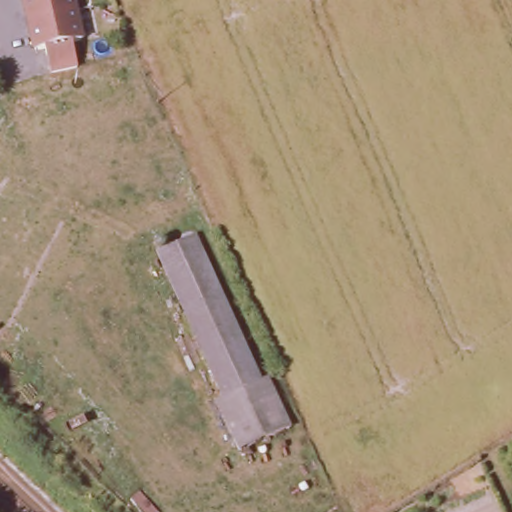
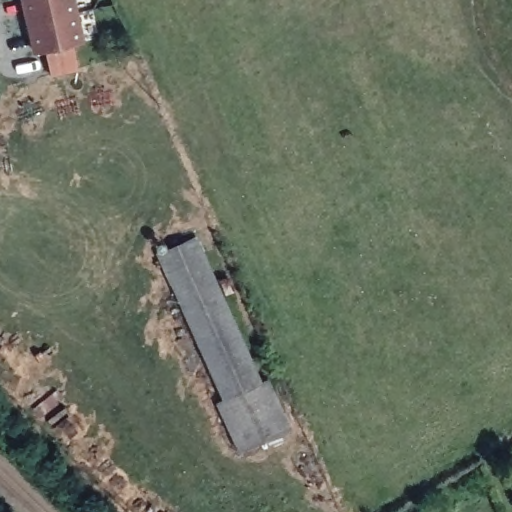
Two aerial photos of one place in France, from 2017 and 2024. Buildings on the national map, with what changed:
unchanged [(81,40),(68,41),(75,69),(50,74),(43,46),(31,49),(20,0),(74,0),(81,40)]
unchanged [(263,375),(267,372),(290,422),(240,445),(217,395),(222,392),(158,250),(198,232),(263,375)]

